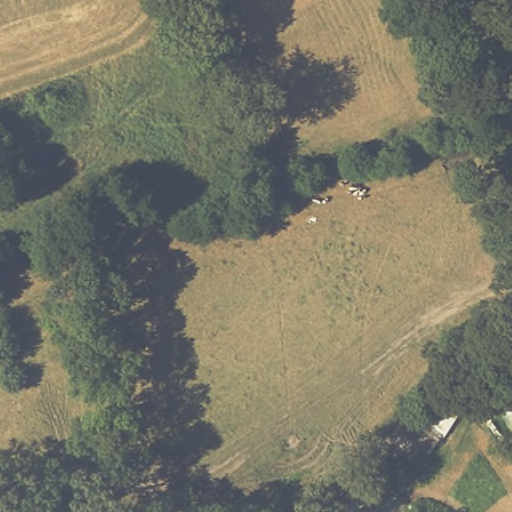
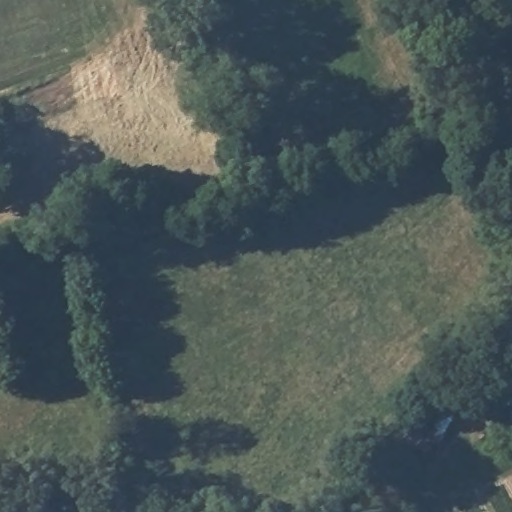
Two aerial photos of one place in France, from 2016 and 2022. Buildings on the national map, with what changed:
unchanged [(512,319),(512,332),(506,326),(512,319)]

